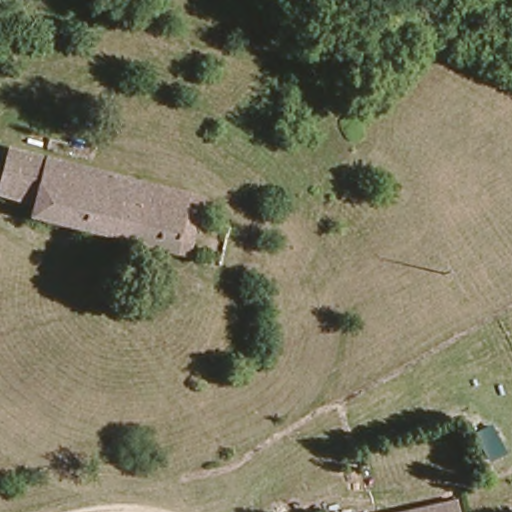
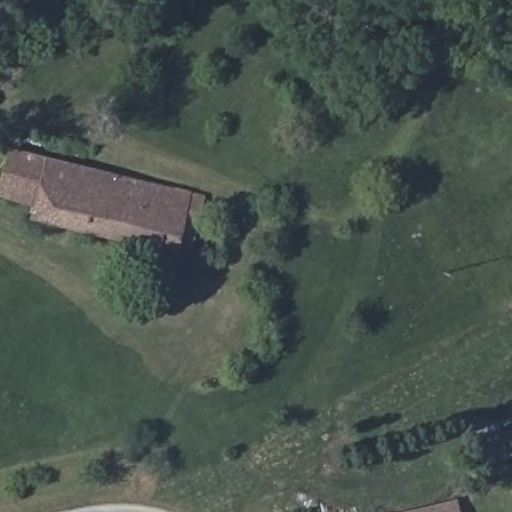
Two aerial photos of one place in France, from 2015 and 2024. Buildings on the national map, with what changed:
unchanged [(167,250),(23,213),(26,204),(0,194),(0,171),(6,148),(41,157),(85,168),(179,192),(177,199),(191,202),(187,222),(180,254),(167,250)]
unchanged [(453,502),(456,512),(409,512),(453,502)]

